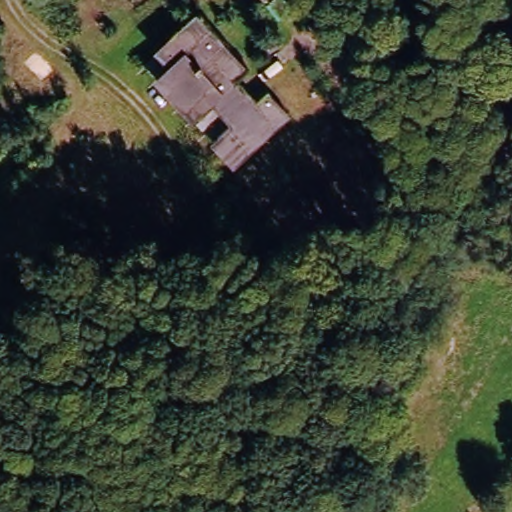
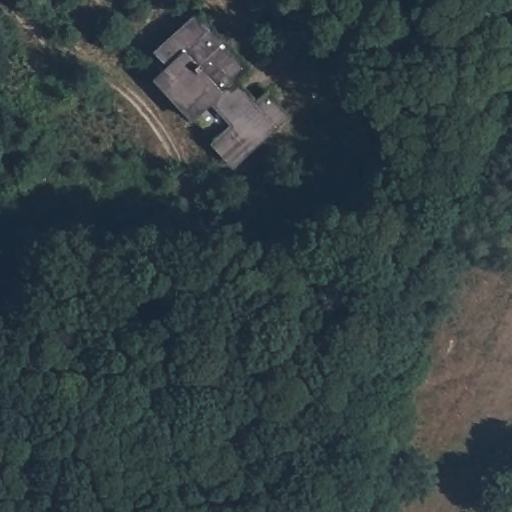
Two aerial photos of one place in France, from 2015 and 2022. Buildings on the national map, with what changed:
unchanged [(196,15),(255,73),(241,84),(258,103),(267,92),(294,119),(226,180),(203,143),(220,128),(211,113),(183,131),(150,86),(165,74),(151,54),(196,15)]

